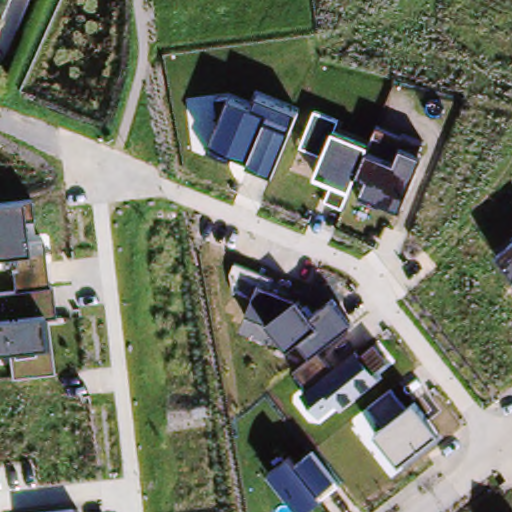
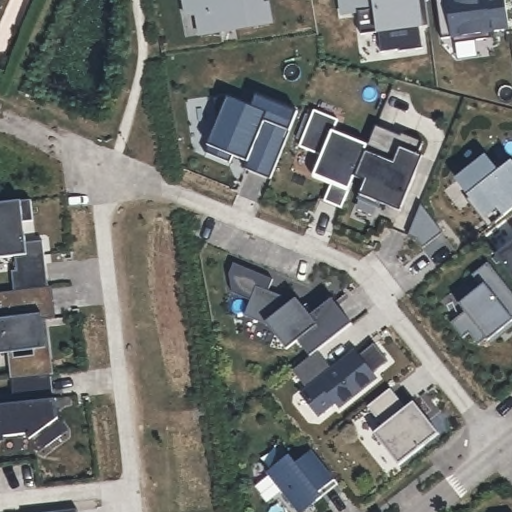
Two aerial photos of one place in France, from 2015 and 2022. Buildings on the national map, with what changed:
new [(269,3),(272,22),(200,35),(197,14),(187,16),(184,0),(263,0),(264,4),(269,3)]
new [(420,27),(422,49),(399,52),(399,50),(381,52),(378,32),(361,35),(357,12),(342,15),(340,0),(418,0),(422,27),(420,27)]
new [(491,31),(492,37),(454,42),(453,36),(442,38),(436,0),(505,0),(509,29),(491,31)]
unchanged [(229,97),(252,105),(255,94),(297,111),(270,178),(245,168),(248,161),(232,155),(229,162),(207,151),(220,122),(215,97),(229,97)]
unchanged [(339,118),(334,130),(367,145),(377,124),(422,141),(417,154),(422,157),(401,209),(362,193),(368,178),(357,175),(350,190),(342,208),(326,201),(332,185),(315,177),(324,154),(300,147),(314,109),(339,118)]
new [(458,181),(486,159),(499,175),(512,165),(512,210),(496,223),(489,228),(467,200),(470,197),(458,181)]
unchanged [(22,219),(25,238),(43,238),(49,286),(51,285),(55,318),(47,319),(54,373),(12,378),(9,356),(0,358),(0,292),(14,290),(12,270),(19,270),(18,256),(0,258),(0,201),(32,198),(34,218),(22,219)]
unchanged [(512,241),(512,275),(497,253),(512,241)]
unchanged [(308,387),(295,370),(310,357),(299,342),(289,349),(270,322),(249,315),(254,300),(235,292),(230,275),(235,261),(274,276),(269,288),(298,299),(310,313),(332,297),(352,324),(319,349),(332,366),(355,348),(360,353),(375,342),(389,360),(372,372),(378,379),(340,408),(335,405),(320,417),(301,393),(308,387)]
new [(483,351),(482,348),(472,337),(466,341),(454,326),(460,321),(455,314),(477,296),(465,281),(489,263),(512,293),(512,322),(489,342),(491,344),(483,351)]
new [(51,410),(66,429),(40,450),(27,434),(0,437),(0,396),(14,395),(12,379),(50,375),(52,400),(54,414),(51,410)]
unchanged [(385,425),(370,406),(392,390),(407,407),(415,402),(440,431),(400,462),(375,433),(385,425)]
new [(0,437),(5,436),(5,441),(0,442),(0,437)]
unchanged [(340,484),(306,512),(300,512),(270,474),(291,456),(297,464),(313,452),(340,484)]
unchanged [(77,508),(78,512),(52,512),(77,508)]

